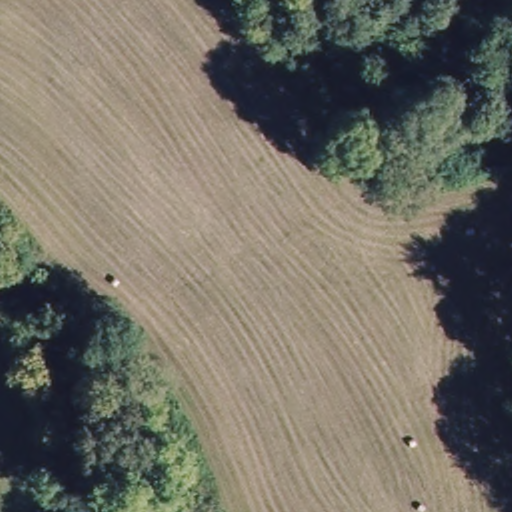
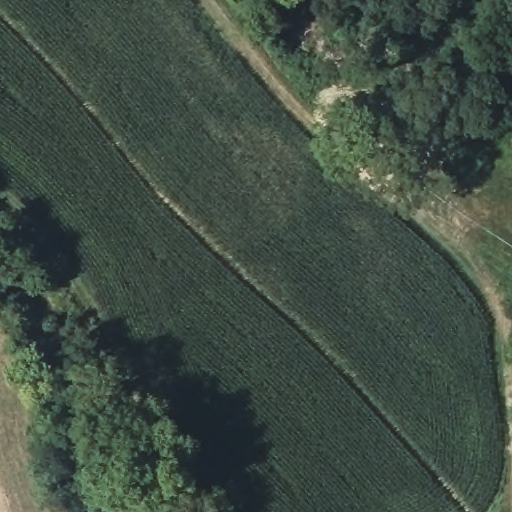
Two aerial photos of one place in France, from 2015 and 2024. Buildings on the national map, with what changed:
[]

